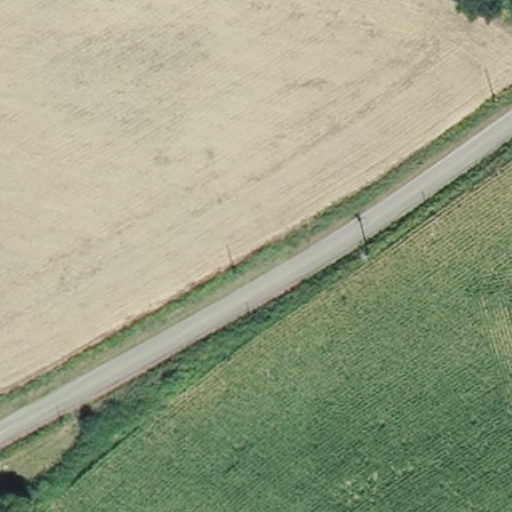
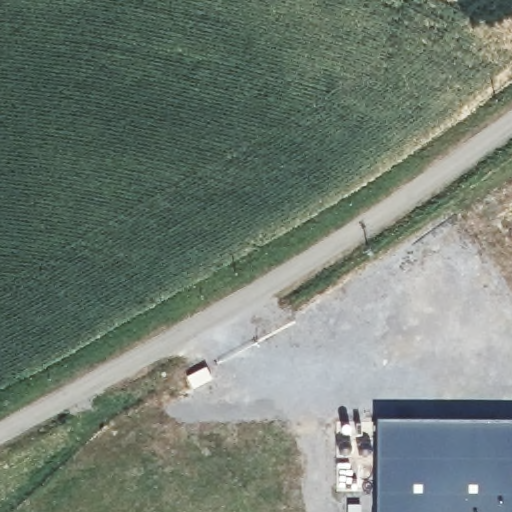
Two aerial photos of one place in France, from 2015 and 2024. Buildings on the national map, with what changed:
new [(378,512),(378,421),(512,421),(512,512),(378,512)]

